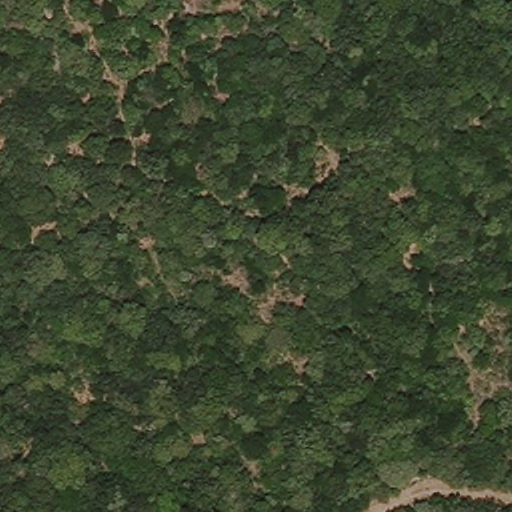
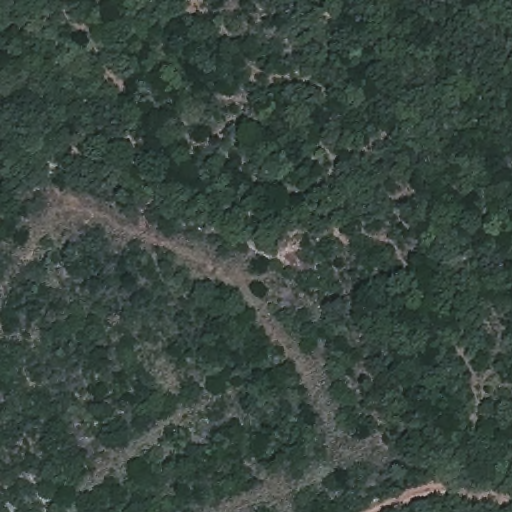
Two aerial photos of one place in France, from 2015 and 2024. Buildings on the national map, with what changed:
[]

